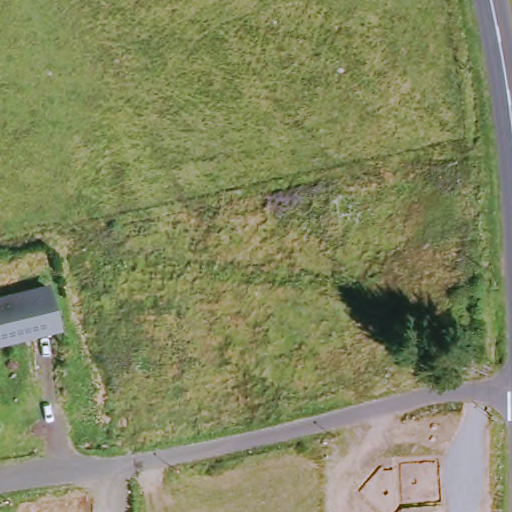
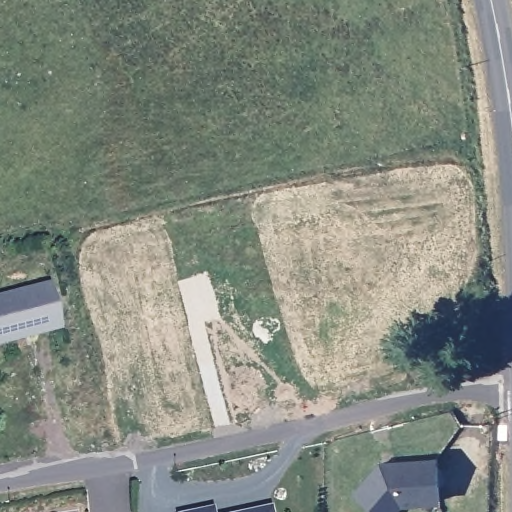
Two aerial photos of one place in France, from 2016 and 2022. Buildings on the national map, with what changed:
unchanged [(55,321),(24,328),(26,336),(0,343),(0,299),(46,287),(55,321)]
new [(401,505),(397,512),(377,512),(355,492),(385,457),(440,457),(441,505),(401,505)]
new [(273,512),(238,512),(271,505),(273,512)]
new [(216,512),(185,512),(215,506),(216,512)]

